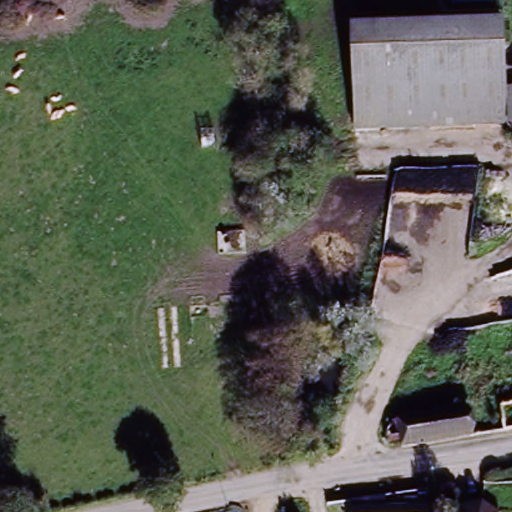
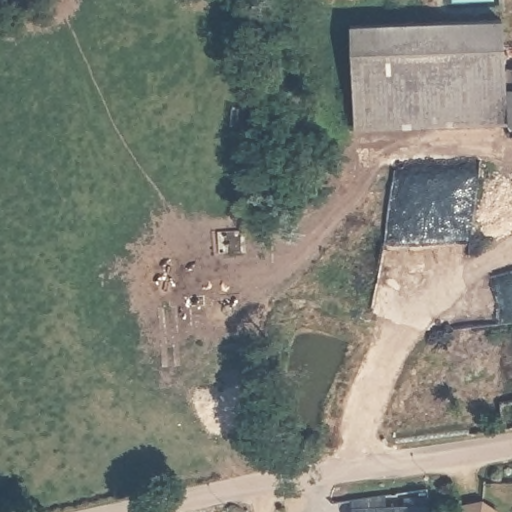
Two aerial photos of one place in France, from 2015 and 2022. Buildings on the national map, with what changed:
unchanged [(359,129),(355,25),(506,20),(507,66),(512,66),(512,122),(359,129)]
unchanged [(499,427),(494,402),(512,399),(512,425),(499,427)]
unchanged [(401,440),(397,412),(465,400),(470,426),(401,440)]
unchanged [(351,510),(356,510),(356,496),(381,495),(381,508),(398,507),(398,492),(422,491),(423,506),(423,512),(351,512),(351,510)]
unchanged [(455,507),(472,500),(480,500),(493,507),(496,512),(451,512),(455,507)]

